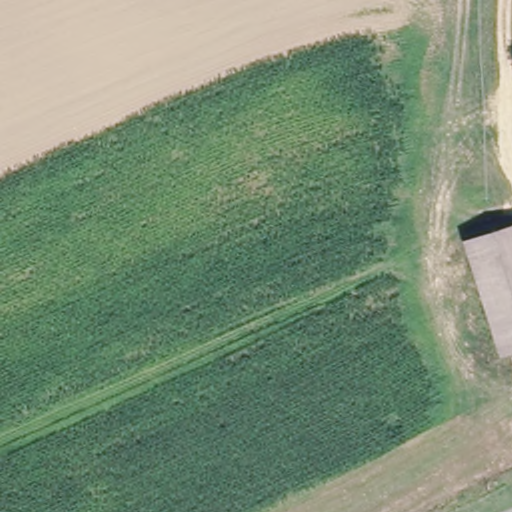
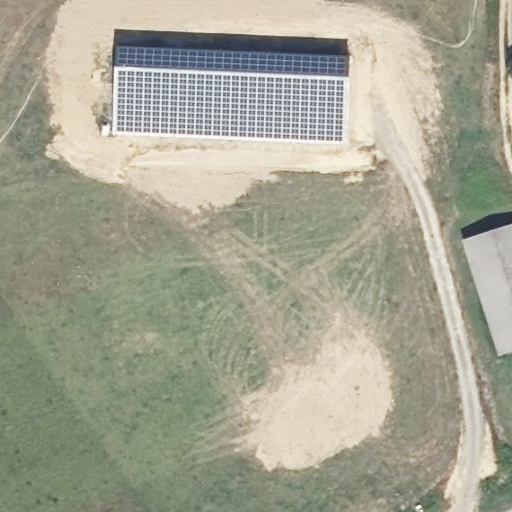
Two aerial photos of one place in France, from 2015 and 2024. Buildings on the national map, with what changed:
new [(117,48),(352,59),(347,145),(114,136),(117,48)]
unchanged [(498,358),(462,243),(512,229),(512,354),(498,358)]

